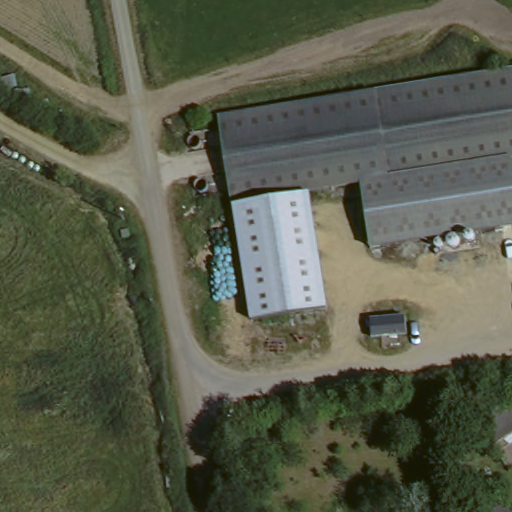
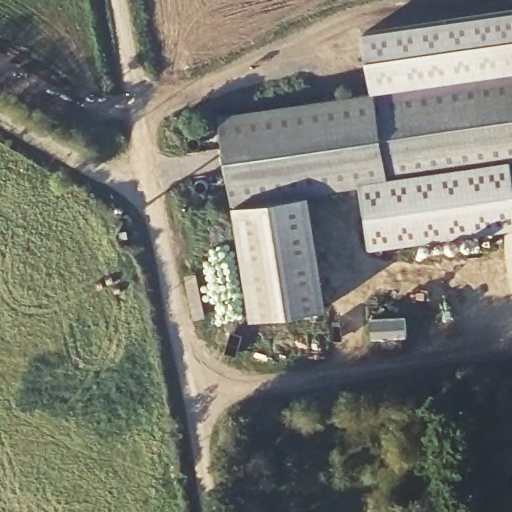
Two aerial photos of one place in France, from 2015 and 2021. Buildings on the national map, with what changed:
new [(364,28),(512,8),(512,77),(376,95),(364,28)]
unchanged [(362,182),(224,200),(216,115),(512,77),(512,163),(362,182)]
unchanged [(512,163),(512,167),(512,232),(372,247),(362,182),(512,163)]
unchanged [(328,308),(252,320),(234,206),(311,194),(328,308)]
unchanged [(494,446),(489,437),(479,441),(472,426),(512,400),(512,433),(494,446)]
unchanged [(501,503),(506,512),(488,512),(501,503)]

